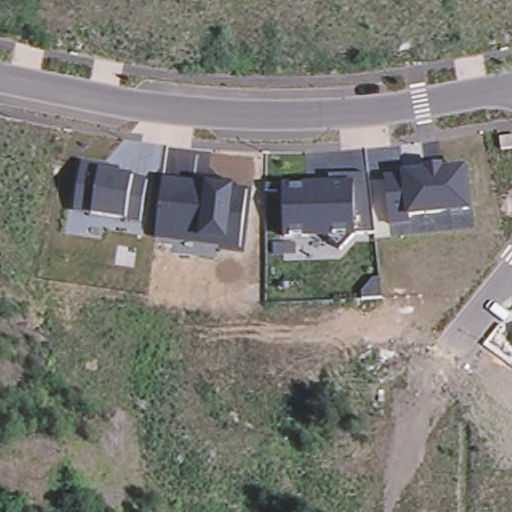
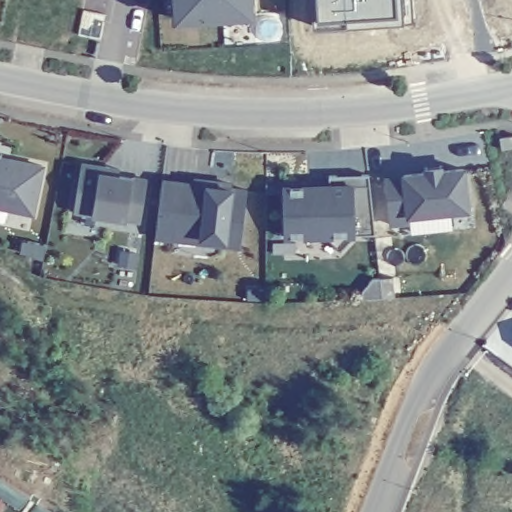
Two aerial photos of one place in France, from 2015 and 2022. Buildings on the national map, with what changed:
new [(252,14),(173,18),(172,0),(251,0),(252,14)]
new [(307,0),(386,0),(387,14),(307,13),(307,0)]
new [(2,159),(0,159),(0,154),(3,154),(2,159)]
new [(0,158),(45,168),(36,216),(0,208),(0,158)]
unchanged [(113,163),(112,170),(133,173),(147,176),(140,222),(127,219),(92,215),(74,210),(82,160),(113,163)]
unchanged [(402,172),(422,170),(422,167),(444,164),(444,168),(465,165),(468,210),(409,217),(387,222),(384,176),(402,172)]
unchanged [(376,234),(354,235),(340,249),(324,236),(285,237),(285,183),(329,181),(329,173),(367,172),(376,234)]
unchanged [(241,245),(222,243),(222,238),(174,232),(173,236),(155,233),(162,178),(207,183),(212,179),(227,181),(231,187),(247,188),(241,245)]

